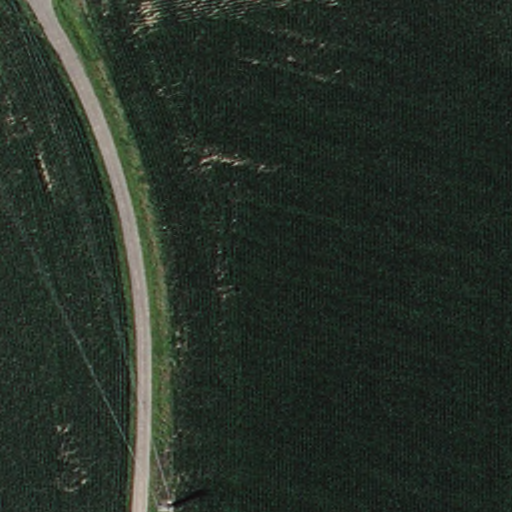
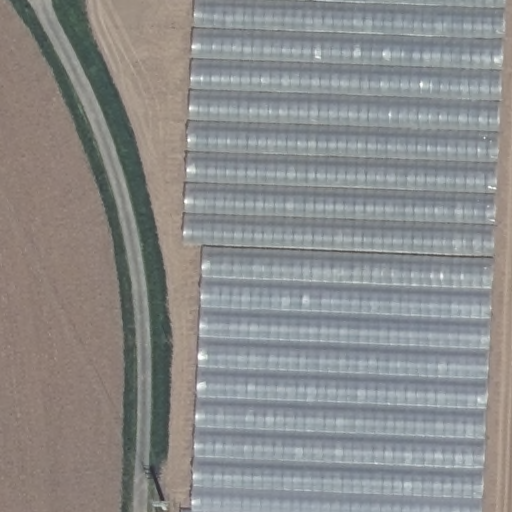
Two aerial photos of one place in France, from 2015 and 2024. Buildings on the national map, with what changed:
demolished [(200,512),(201,440),(194,439),(196,336),(167,155),(111,0),(230,0),(512,69),(512,137),(489,512),(200,512)]
new [(191,510),(202,245),(184,244),(194,0),(506,0),(483,512),(181,512),(181,510),(191,510)]
demolished [(512,512),(509,512),(512,461),(512,512)]

